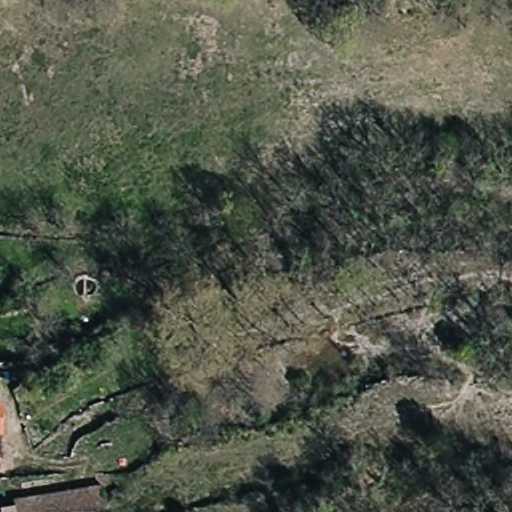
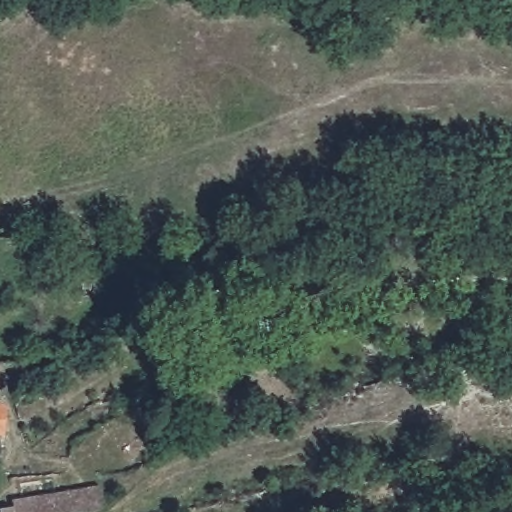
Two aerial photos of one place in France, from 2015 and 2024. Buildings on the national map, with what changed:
unchanged [(108,506),(70,512),(7,512),(6,499),(104,483),(108,506)]

